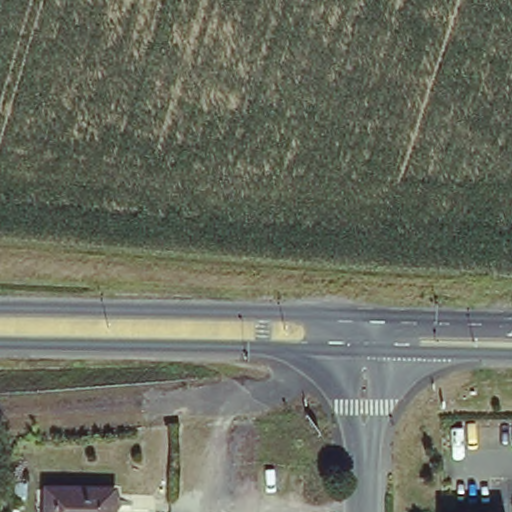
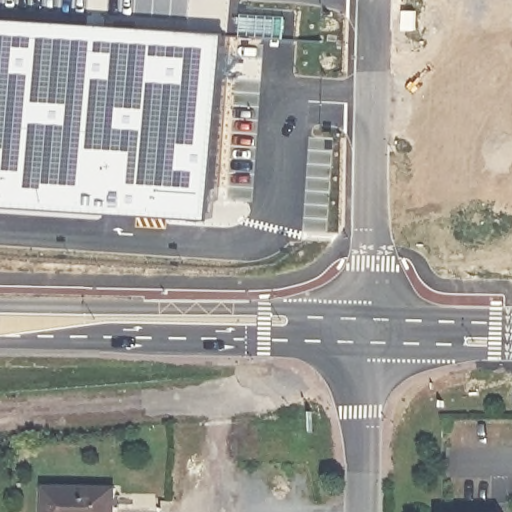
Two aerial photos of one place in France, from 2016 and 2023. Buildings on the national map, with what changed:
new [(232,35),(220,220),(0,208),(0,22),(232,35)]
unchanged [(313,486),(313,474),(330,473),(330,499),(320,499),(320,486),(313,486)]
unchanged [(115,512),(45,512),(46,487),(115,491),(115,512)]

